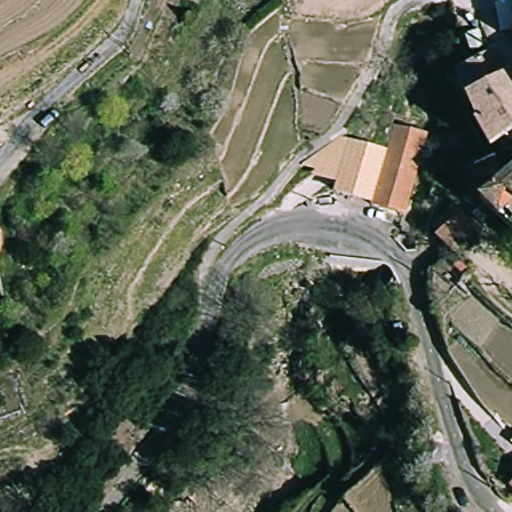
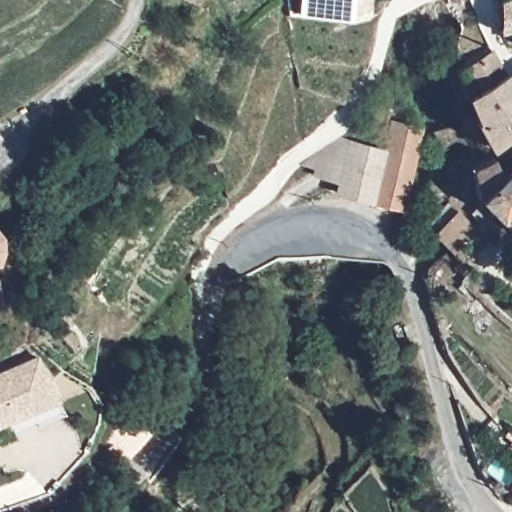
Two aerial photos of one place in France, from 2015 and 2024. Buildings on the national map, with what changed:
new [(297,17),(298,0),(350,0),(349,21),(297,17)]
unchanged [(492,5),(506,0),(512,0),(512,32),(499,35),(492,5)]
unchanged [(491,52),(504,76),(511,72),(512,74),(512,130),(508,134),(494,146),(478,121),(481,119),(471,94),(475,92),(462,68),(491,52)]
unchanged [(420,159),(407,215),(371,205),(391,122),(422,132),(420,159)]
unchanged [(459,131),(463,147),(443,152),(440,135),(459,131)]
unchanged [(372,201),(353,199),(333,194),(336,182),(314,175),(315,167),(302,164),(342,136),(348,137),(369,143),(386,144),(372,201)]
unchanged [(477,168),(480,164),(509,149),(512,149),(512,224),(484,196),(477,168)]
unchanged [(434,234),(459,213),(476,230),(450,250),(434,234)]
unchanged [(6,234),(6,245),(2,261),(0,261),(0,226),(6,234)]
unchanged [(482,278),(487,272),(492,277),(487,283),(482,278)]
new [(0,426),(0,371),(37,353),(56,401),(0,426)]
demolished [(24,368),(40,415),(0,428),(0,377),(24,368)]
unchanged [(126,457),(98,437),(121,406),(138,418),(149,425),(126,457)]

